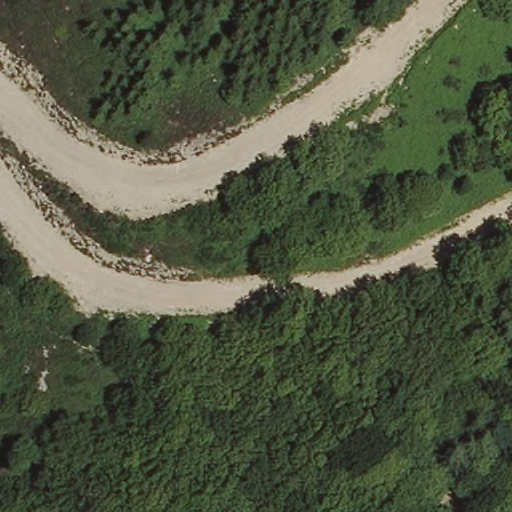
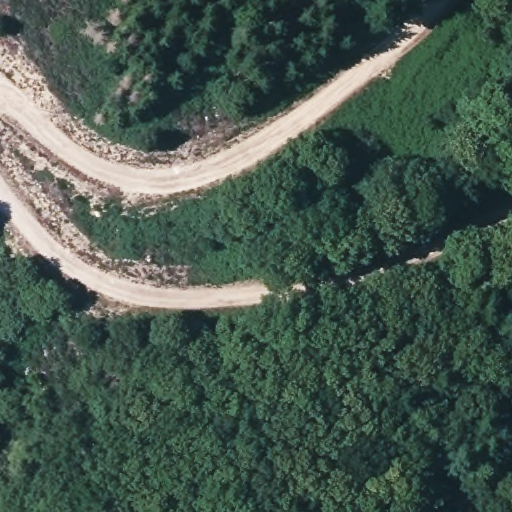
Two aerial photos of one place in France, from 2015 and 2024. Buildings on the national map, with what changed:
[]

